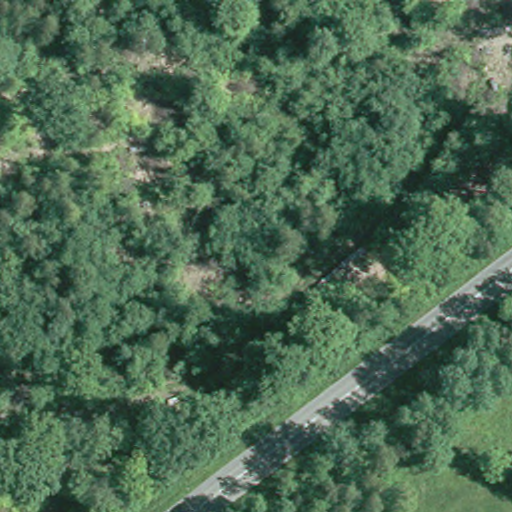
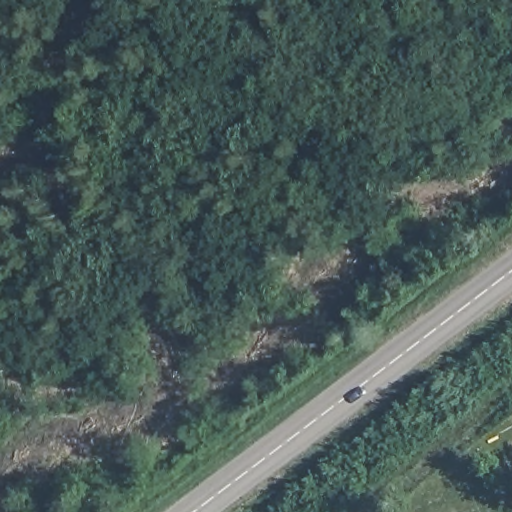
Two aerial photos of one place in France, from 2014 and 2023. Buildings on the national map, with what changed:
[]

